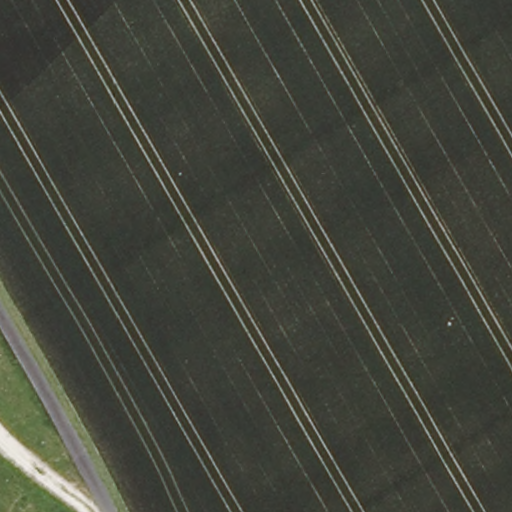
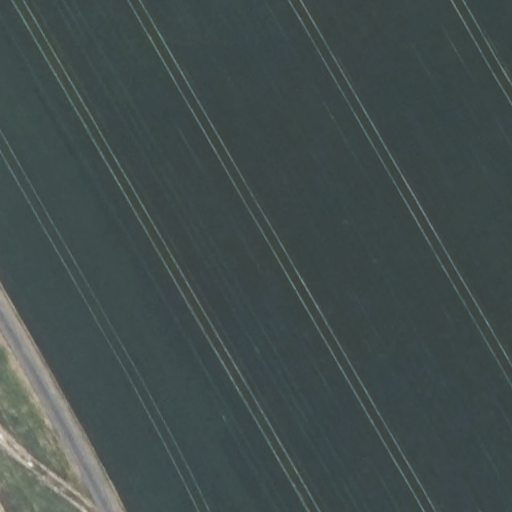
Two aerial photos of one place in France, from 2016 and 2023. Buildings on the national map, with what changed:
[]

